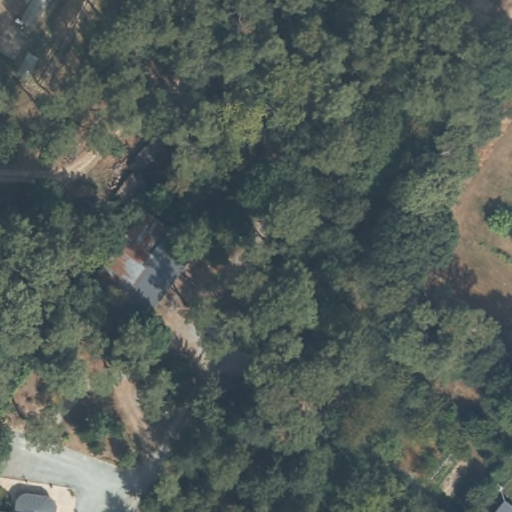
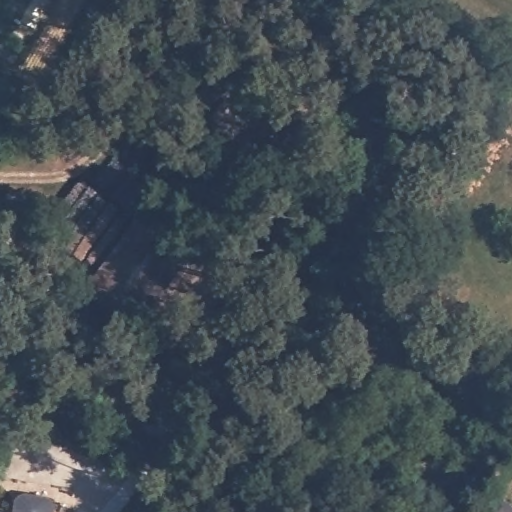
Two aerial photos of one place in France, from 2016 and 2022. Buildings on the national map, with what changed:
unchanged [(131,333),(78,290),(128,231),(177,274),(131,333)]
unchanged [(0,300),(0,278),(11,285),(1,301),(0,300)]
unchanged [(17,500),(22,497),(46,497),(51,501),(54,505),(53,512),(13,512),(14,504),(17,500)]

